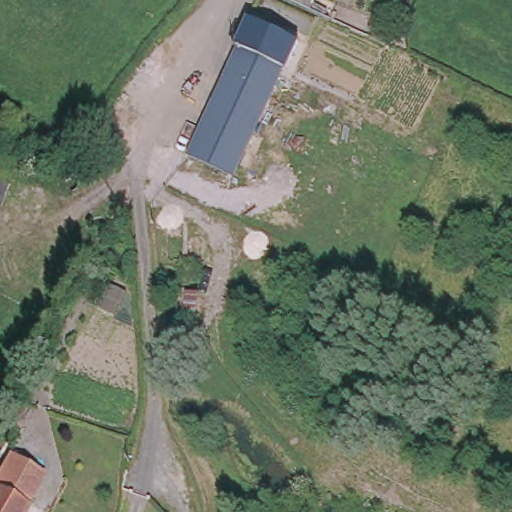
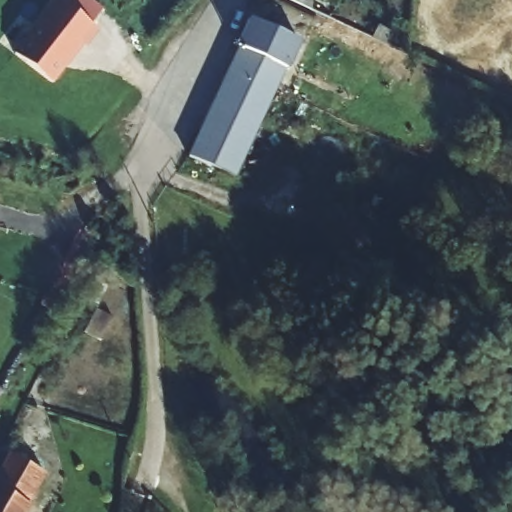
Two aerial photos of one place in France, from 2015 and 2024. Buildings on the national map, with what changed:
new [(52,84),(12,54),(53,0),(61,0),(63,2),(65,0),(91,0),(102,10),(90,24),(98,30),(86,47),(83,44),(52,84)]
unchanged [(311,11),(287,0),(311,0),(311,11)]
unchanged [(238,49),(235,47),(248,19),(298,42),(287,68),(292,71),(282,92),(277,89),(235,177),(188,157),(238,49)]
unchanged [(204,315),(191,312),(196,290),(208,292),(204,315)]
unchanged [(0,512),(0,464),(3,458),(7,450),(18,457),(27,463),(46,473),(25,512),(0,512)]

